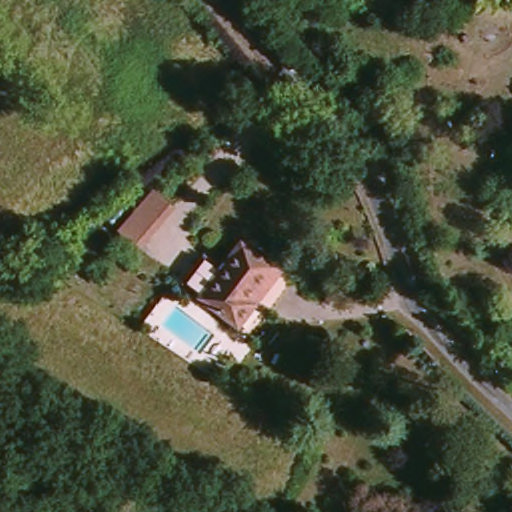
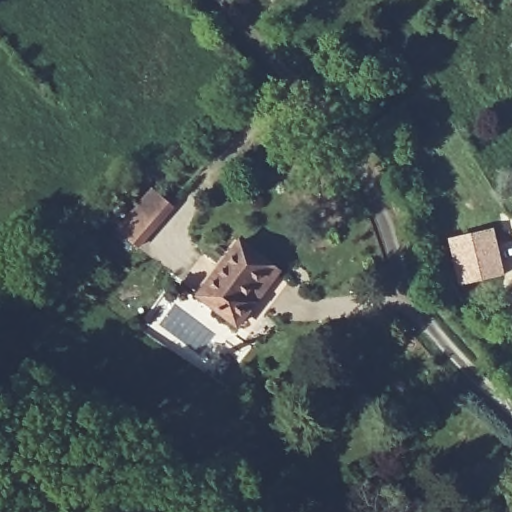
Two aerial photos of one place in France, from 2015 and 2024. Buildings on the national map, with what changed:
new [(447,239),(492,229),(503,276),(458,286),(447,239)]
unchanged [(257,310),(240,330),(196,295),(179,281),(202,254),(219,267),(240,242),(273,270),(283,277),(257,310)]

